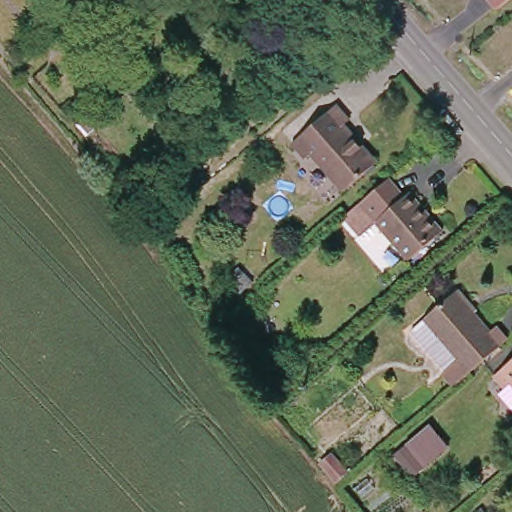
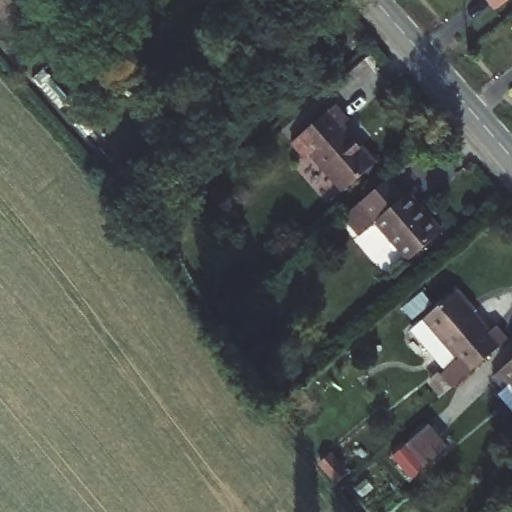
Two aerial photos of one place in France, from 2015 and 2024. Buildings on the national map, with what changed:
unchanged [(494,10),(486,0),(506,0),(494,10)]
unchanged [(82,65),(67,49),(81,36),(90,45),(97,53),(82,65)]
unchanged [(335,110),(348,124),(341,130),(374,168),(344,194),(310,156),(305,162),(292,147),(335,110)]
unchanged [(389,186),(403,202),(380,222),(358,241),(343,226),(389,186)]
unchanged [(403,202),(414,193),(447,231),(413,260),(385,227),(380,222),(403,202)]
unchanged [(445,301),(491,356),(462,380),(460,382),(414,328),(445,301)]
unchanged [(236,320),(246,332),(234,343),(223,331),(236,320)]
unchanged [(505,389),(494,376),(512,360),(512,386),(510,384),(505,389)]
unchanged [(444,453),(420,474),(400,451),(425,430),(444,453)]

